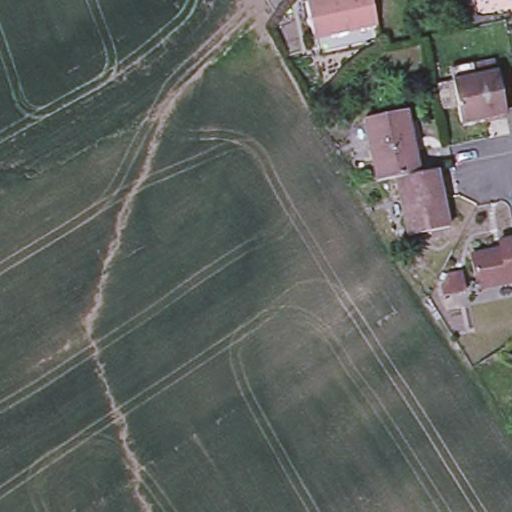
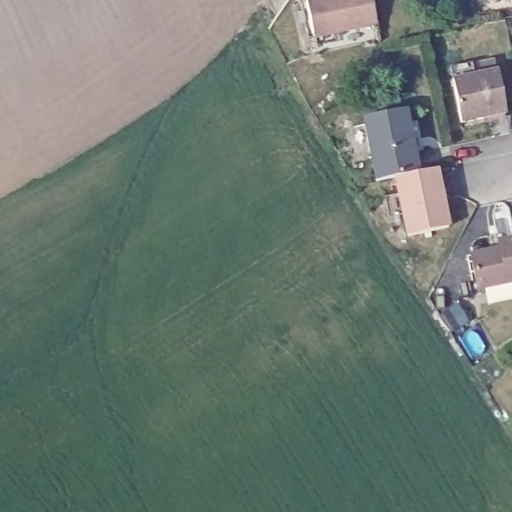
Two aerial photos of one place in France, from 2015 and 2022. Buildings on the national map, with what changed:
unchanged [(313,38),(306,6),(328,0),(371,0),(376,24),(313,38)]
unchanged [(460,128),(456,110),(440,112),(435,89),(451,86),(465,83),(462,70),(494,63),(497,76),(504,119),(460,128)]
unchanged [(362,124),(404,115),(412,156),(410,158),(414,179),(395,183),(375,187),(362,124)]
unchanged [(414,179),(431,175),(436,194),(440,194),(448,234),(407,242),(395,183),(414,179)]
unchanged [(477,292),(470,259),(499,253),(497,246),(512,243),(512,285),(477,292)]
unchanged [(466,293),(452,296),(447,274),(462,271),(466,293)]

